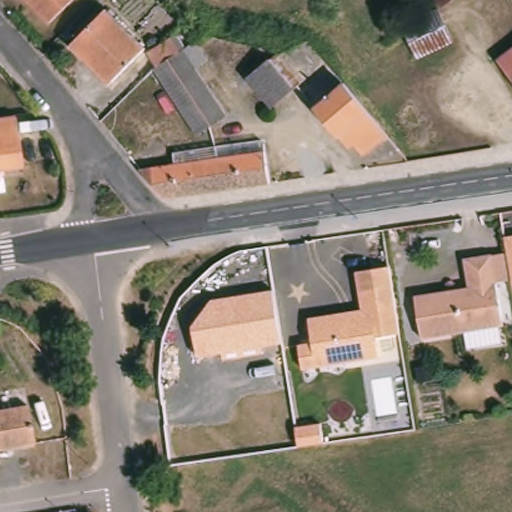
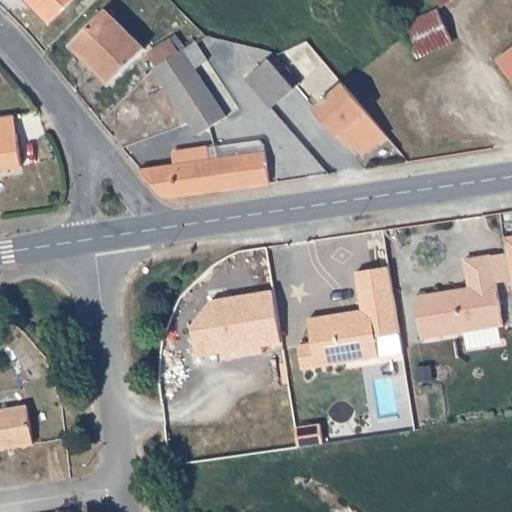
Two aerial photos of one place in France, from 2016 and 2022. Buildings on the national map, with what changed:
unchanged [(21,0),(68,0),(48,20),(45,23),(21,0)]
unchanged [(443,11),(435,0),(458,0),(443,11)]
unchanged [(145,48),(112,81),(89,57),(85,60),(72,46),(107,11),(145,48)]
unchanged [(438,15),(453,47),(417,64),(403,31),(438,15)]
unchanged [(147,54),(171,39),(180,53),(196,44),(207,60),(196,69),(226,116),(210,127),(198,135),(185,115),(155,70),(157,68),(147,54)]
unchanged [(512,54),(512,83),(498,65),(512,54)]
unchanged [(266,64),(272,59),(280,67),(288,77),(297,88),(291,94),(268,111),(267,113),(241,84),(259,70),(266,64)]
unchanged [(343,146),(315,114),(343,90),(387,140),(363,159),(353,148),(348,152),(343,146)]
unchanged [(10,119),(17,171),(0,174),(0,121),(10,119)]
unchanged [(170,157),(212,151),(258,145),(260,150),(266,187),(169,201),(163,201),(159,201),(156,199),(136,174),(171,169),(170,157)]
unchanged [(512,265),(508,235),(512,234),(512,265)]
unchanged [(418,295),(472,288),(468,260),(496,256),(505,326),(423,337),(418,295)]
unchanged [(361,308),(356,270),(390,266),(398,333),(375,336),(377,356),(300,366),(297,342),(311,340),(307,316),(361,308)]
unchanged [(281,343),(263,345),(266,353),(222,360),(220,351),(197,356),(192,330),(212,300),(274,290),(281,343)]
unchanged [(38,442),(0,448),(0,409),(32,404),(38,442)]
unchanged [(317,442),(293,445),(291,426),(315,423),(317,442)]

